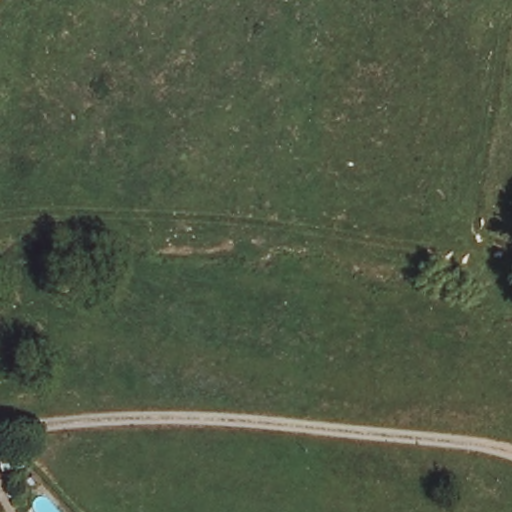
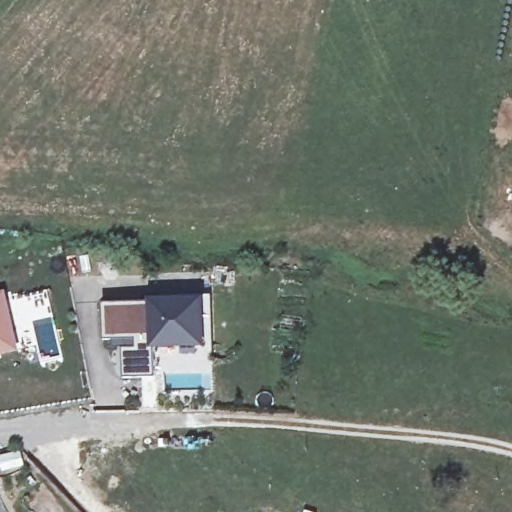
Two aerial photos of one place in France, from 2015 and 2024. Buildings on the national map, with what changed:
new [(8,291),(20,353),(0,357),(0,293),(8,291)]
new [(102,340),(100,301),(201,297),(208,297),(210,341),(203,341),(154,343),(155,377),(122,378),(121,349),(121,339),(102,340)]

